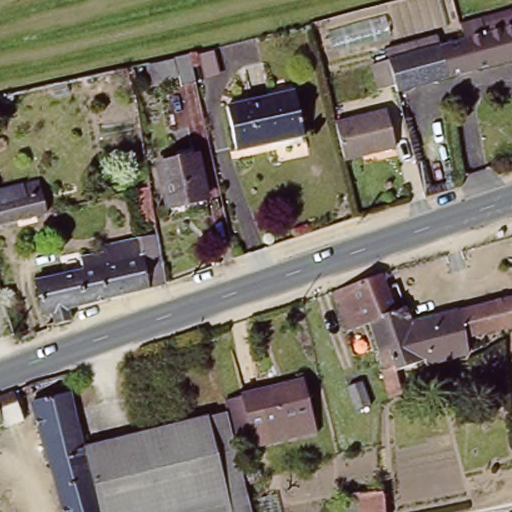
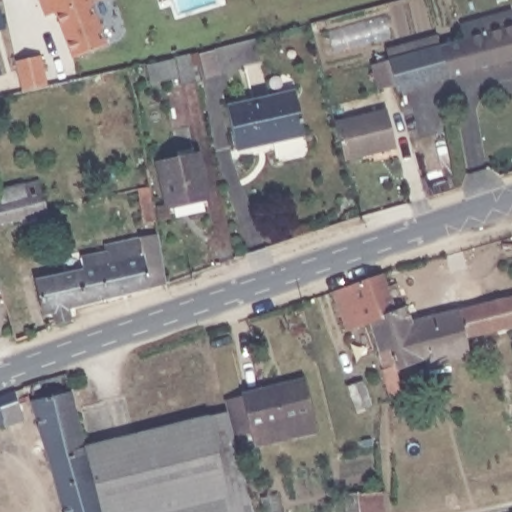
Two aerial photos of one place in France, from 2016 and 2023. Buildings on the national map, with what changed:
new [(55,11),(45,15),(40,0),(92,0),(107,44),(71,57),(55,11)]
unchanged [(372,67),(382,64),(467,39),(462,26),(483,20),(487,34),(512,26),(512,60),(397,93),(397,88),(389,90),(380,93),(372,67)]
unchanged [(185,83),(177,55),(192,53),(197,80),(185,83)]
unchanged [(179,75),(155,80),(150,65),(175,59),(179,75)]
unchanged [(297,96),(307,138),(240,153),(230,111),(297,96)]
unchanged [(337,125),(388,113),(397,148),(347,162),(337,125)]
unchanged [(203,205),(165,214),(157,172),(177,168),(175,160),(192,156),(203,205)]
new [(0,192),(41,180),(42,187),(29,190),(30,199),(2,207),(0,201),(0,192)]
unchanged [(29,190),(42,187),(50,216),(0,229),(0,207),(30,199),(29,190)]
unchanged [(144,224),(141,211),(156,208),(158,222),(144,224)]
unchanged [(73,271),(86,268),(84,258),(124,249),(122,243),(160,235),(169,286),(83,308),(73,271)]
unchanged [(59,318),(48,321),(39,281),(73,271),(83,308),(72,310),(74,322),(60,324),(59,318)]
unchanged [(335,293),(382,277),(387,291),(395,312),(367,324),(369,326),(350,334),(335,293)]
unchanged [(400,394),(382,356),(391,351),(390,349),(382,353),(369,326),(367,324),(395,312),(407,307),(416,325),(505,300),(506,285),(512,284),(512,327),(429,348),(434,357),(402,369),(412,388),(400,394)]
unchanged [(312,434),(285,441),(281,431),(248,438),(238,400),(300,384),(312,434)]
unchanged [(22,413),(5,419),(7,422),(0,425),(0,398),(17,392),(22,413)]
unchanged [(39,434),(31,406),(69,395),(84,451),(100,512),(65,512),(55,480),(39,434)]
unchanged [(227,415),(250,512),(100,512),(84,451),(227,415)]
unchanged [(387,494),(389,512),(363,512),(361,497),(387,494)]

